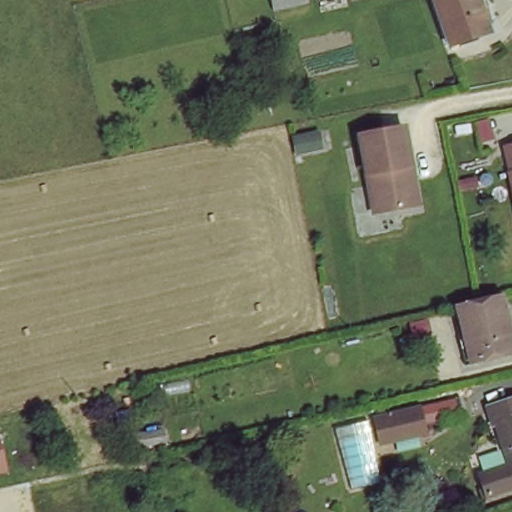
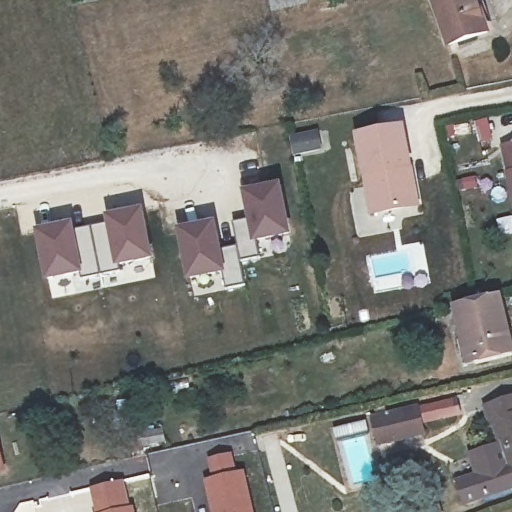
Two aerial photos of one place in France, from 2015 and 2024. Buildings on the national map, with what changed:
unchanged [(274,0),(300,0),(302,6),(277,11),(274,0)]
unchanged [(479,0),(491,40),(449,51),(434,0),(479,0)]
unchanged [(410,205),(372,212),(359,134),(403,126),(410,166),(416,204),(410,205)]
unchanged [(506,145),(512,143),(512,191),(507,171),(511,170),(506,145)]
new [(188,282),(178,230),(216,222),(221,251),(237,247),(234,224),(250,223),(243,193),(281,185),(292,235),(257,243),(259,257),(240,261),(244,284),(227,288),(224,275),(188,282)]
new [(144,208),(155,261),(116,269),(106,223),(106,216),(144,208)]
new [(74,221),(76,229),(84,278),(43,282),(32,227),(74,221)]
new [(106,223),(116,269),(117,272),(84,278),(76,229),(106,223)]
unchanged [(459,346),(465,345),(456,313),(475,308),(501,302),(512,345),(512,357),(480,365),(465,369),(459,346)]
unchanged [(420,429),(422,435),(379,447),(372,421),(455,401),(459,418),(420,429)]
unchanged [(490,434),(485,418),(512,407),(512,494),(490,503),(482,480),(511,469),(497,432),(490,434)]
unchanged [(0,473),(0,435),(10,470),(0,473)]
unchanged [(133,458),(130,448),(148,443),(152,454),(133,458)]
new [(203,479),(211,477),(206,457),(233,451),(238,470),(245,469),(254,512),(210,512),(203,479)]
new [(125,479),(134,505),(100,512),(93,512),(89,487),(125,479)]
new [(134,505),(135,512),(100,512),(134,505)]
unchanged [(435,510),(436,512),(429,512),(435,510)]

